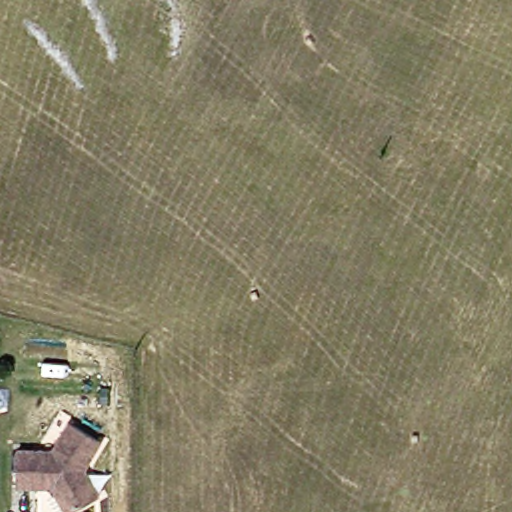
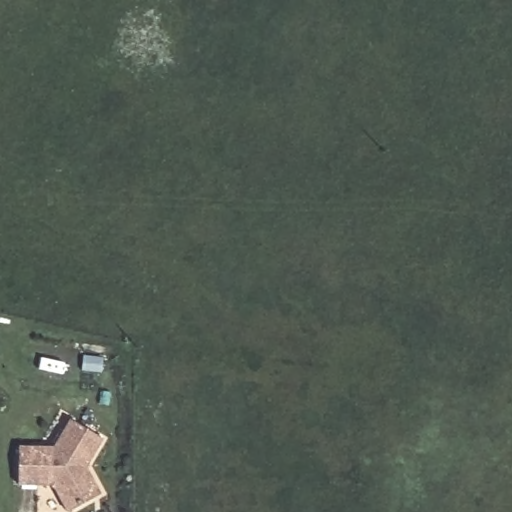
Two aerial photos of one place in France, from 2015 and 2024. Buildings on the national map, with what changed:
unchanged [(100,501),(84,512),(76,512),(61,491),(52,486),(22,485),(23,448),(58,449),(75,422),(107,442),(90,469),(92,471),(109,496),(100,501)]

